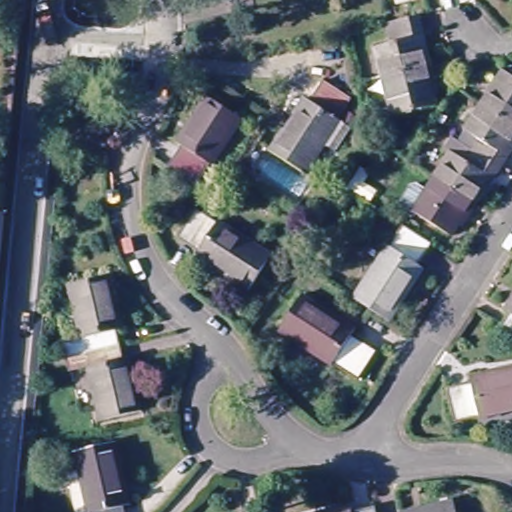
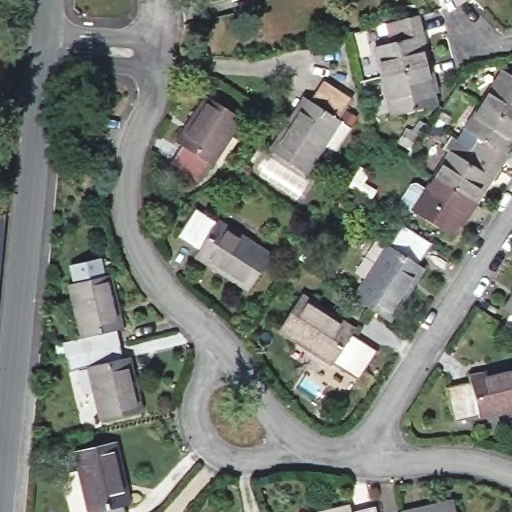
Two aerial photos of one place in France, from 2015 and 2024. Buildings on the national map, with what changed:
unchanged [(427,79),(433,107),(393,117),(376,50),(395,44),(390,24),(417,17),(422,37),(429,64),(428,64),(431,77),(427,79)]
unchanged [(408,180),(413,177),(428,187),(450,152),(445,149),(450,139),(456,143),(505,70),(512,75),(512,152),(507,159),(503,156),(489,180),(491,181),(476,205),(473,204),(466,216),(463,215),(448,238),(410,215),(415,209),(400,199),(400,195),(408,180)]
unchanged [(336,121),(350,131),(332,160),(320,153),(306,175),(270,152),(302,100),(307,103),(322,80),(350,97),(336,121)]
unchanged [(212,170),(210,169),(195,190),(166,171),(180,150),(174,146),(205,100),(241,124),(212,170)]
unchanged [(240,177),(233,173),(239,164),(246,168),(240,177)]
unchanged [(219,220),(271,254),(249,289),(196,256),(199,251),(177,237),(196,209),(217,222),(219,220)]
unchanged [(6,217),(0,289),(0,217),(6,217)]
unchanged [(415,270),(421,275),(387,326),(351,303),(385,250),(387,252),(401,230),(429,249),(415,270)]
unchanged [(122,330),(117,331),(123,361),(129,360),(140,413),(100,421),(88,370),(70,373),(63,343),(81,340),(70,285),(110,277),(122,330)]
unchanged [(510,317),(504,312),(512,299),(512,334),(503,329),(510,317)]
unchanged [(354,341),(373,355),(355,383),(335,370),(333,372),(279,336),(303,300),(357,335),(354,341)]
unchanged [(512,368),(512,413),(488,419),(487,415),(462,421),(455,388),(480,381),(480,375),(512,368)]
unchanged [(130,497),(124,499),(127,512),(91,512),(90,506),(87,507),(73,445),(115,435),(130,497)]
unchanged [(450,500),(453,512),(404,512),(450,500)]
unchanged [(371,504),(373,512),(303,512),(345,503),(346,510),(371,504)]

